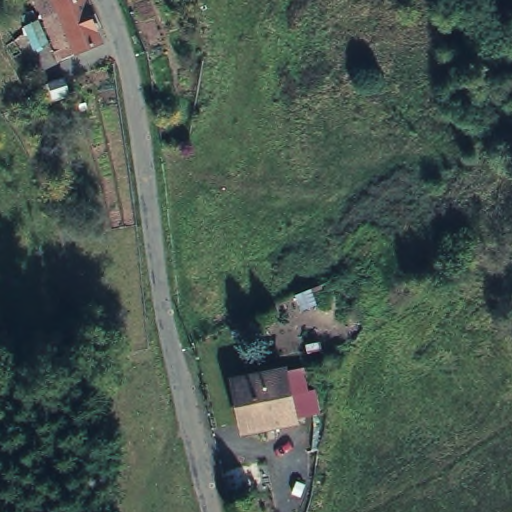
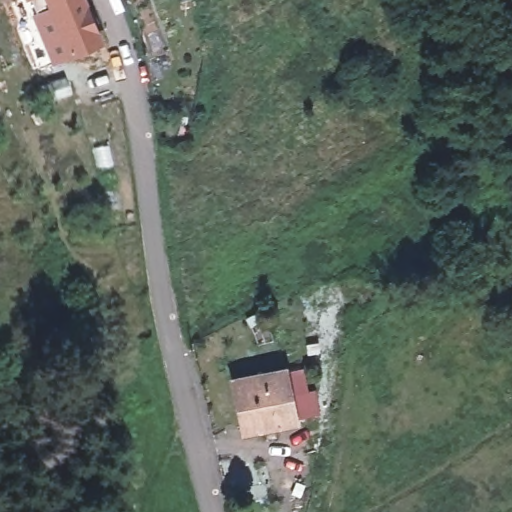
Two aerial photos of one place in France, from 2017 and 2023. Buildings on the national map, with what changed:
unchanged [(62,53),(38,0),(58,0),(78,47),(62,53)]
unchanged [(78,47),(58,0),(85,0),(101,37),(78,47)]
unchanged [(38,17),(47,38),(35,43),(25,22),(38,17)]
unchanged [(38,87),(64,78),(68,94),(42,102),(38,87)]
unchanged [(285,365),(295,416),(244,426),(233,376),(285,365)]

